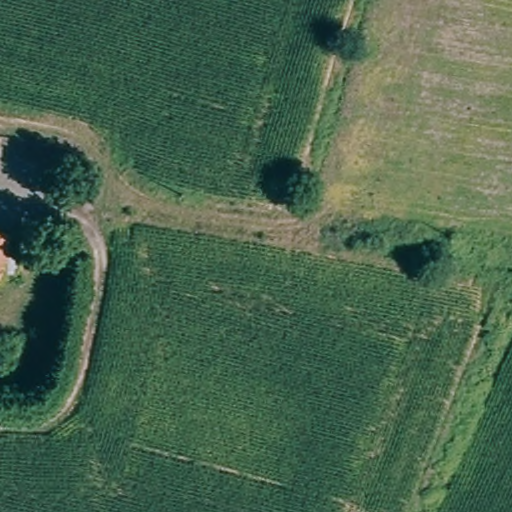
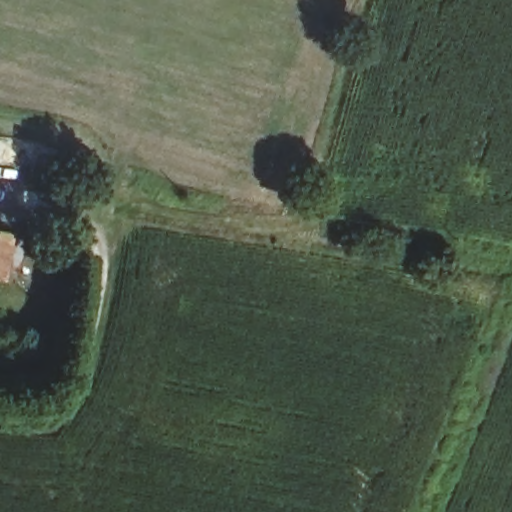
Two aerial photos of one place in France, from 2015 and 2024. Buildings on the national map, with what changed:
unchanged [(0,237),(11,239),(6,275),(0,275),(0,237)]

